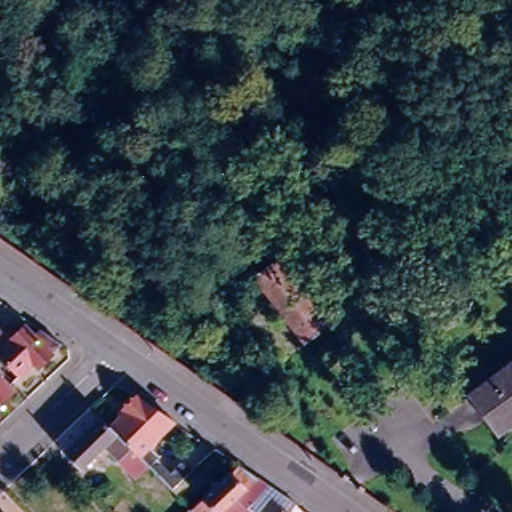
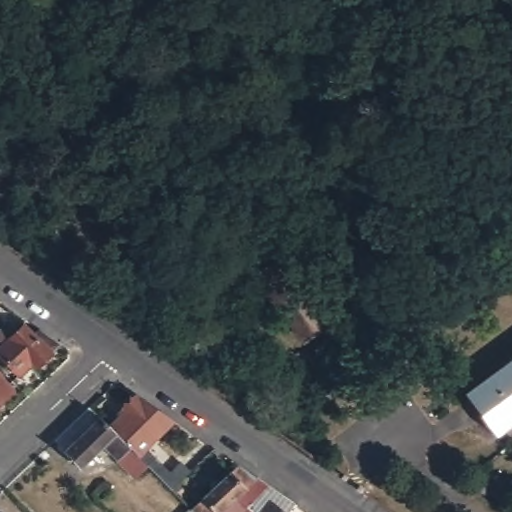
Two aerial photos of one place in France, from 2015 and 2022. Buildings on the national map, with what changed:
unchanged [(275,264),(324,326),(305,342),(256,280),(275,264)]
unchanged [(56,360),(42,373),(37,368),(22,381),(0,357),(7,351),(0,344),(0,341),(15,327),(22,337),(30,331),(39,341),(44,336),(64,350),(55,358),(56,360)]
unchanged [(512,357),(512,415),(492,430),(465,393),(512,357)]
unchanged [(0,412),(0,376),(19,395),(0,412)]
unchanged [(172,423),(146,450),(169,475),(181,463),(189,473),(170,491),(147,467),(109,428),(124,413),(121,410),(136,397),(172,423)]
unchanged [(109,428),(147,467),(133,480),(104,448),(80,470),(62,452),(99,418),(109,428)]
unchanged [(189,510),(201,500),(236,466),(255,480),(267,488),(293,506),(288,512),(257,512),(269,499),(262,493),(246,509),(242,512),(185,512),(188,509),(189,510)]
unchanged [(0,512),(0,510),(2,512),(0,512)]
unchanged [(247,512),(245,512),(246,511),(247,512)]

